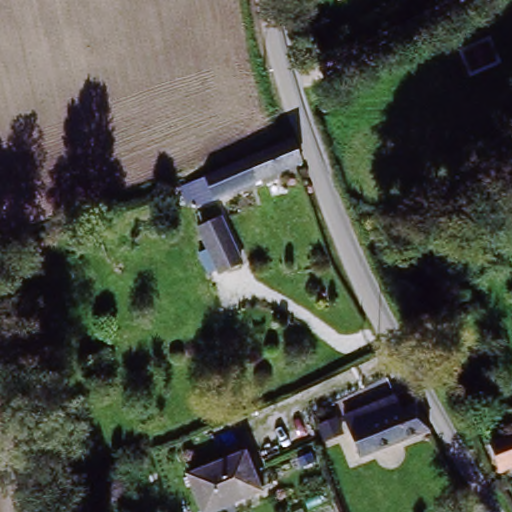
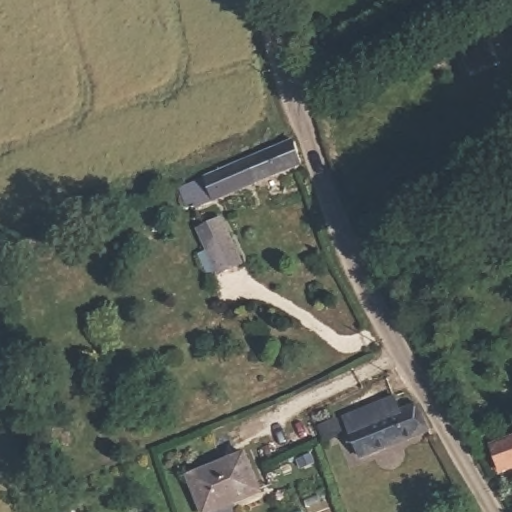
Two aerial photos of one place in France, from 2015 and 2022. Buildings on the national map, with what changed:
unchanged [(277,145),(289,141),(300,174),(192,214),(188,201),(180,204),(172,184),(218,167),(277,145)]
unchanged [(240,262),(218,273),(217,269),(208,273),(198,253),(208,249),(199,225),(222,214),(240,262)]
unchanged [(398,409),(407,406),(415,404),(428,437),(357,460),(342,411),(395,395),(398,409)]
unchanged [(490,447),(512,438),(512,466),(500,471),(490,447)]
unchanged [(258,492),(207,512),(204,512),(188,474),(242,453),(258,492)]

